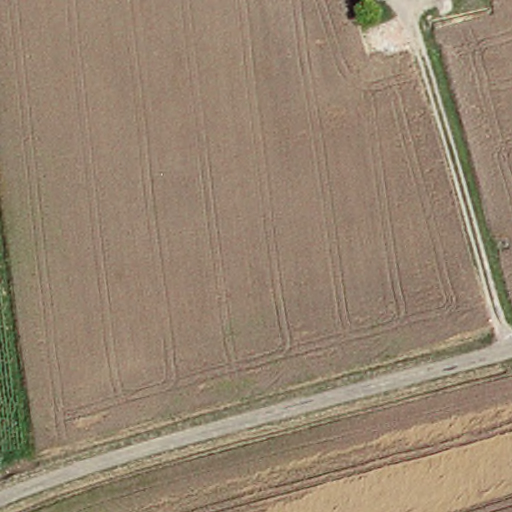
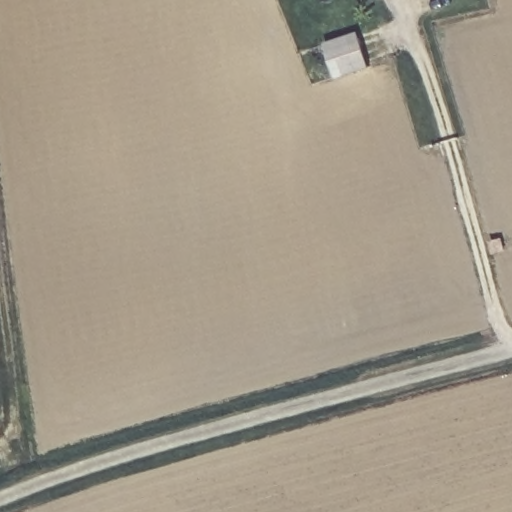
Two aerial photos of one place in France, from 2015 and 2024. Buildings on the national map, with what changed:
new [(358,31),(370,67),(336,79),(324,42),(358,31)]

